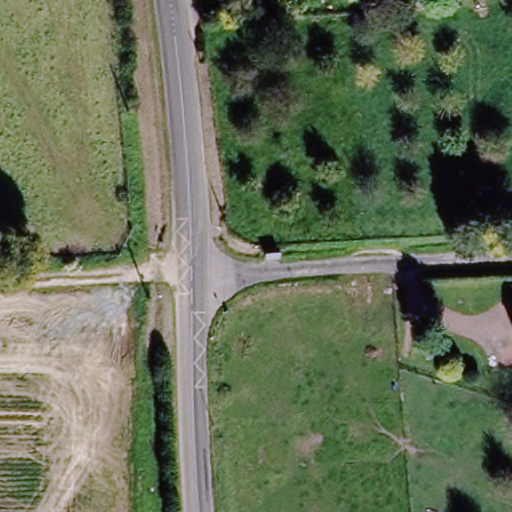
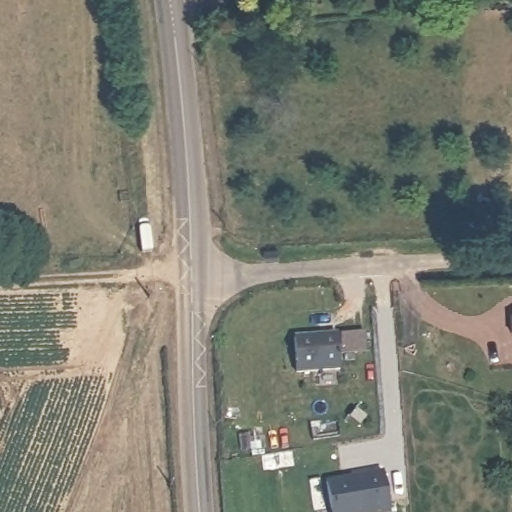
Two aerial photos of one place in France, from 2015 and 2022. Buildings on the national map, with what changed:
new [(359,329),(361,349),(337,351),(335,332),(359,329)]
new [(335,367),(292,371),(288,336),(332,332),(335,367)]
new [(331,512),(327,483),(383,473),(391,512),(331,512)]

